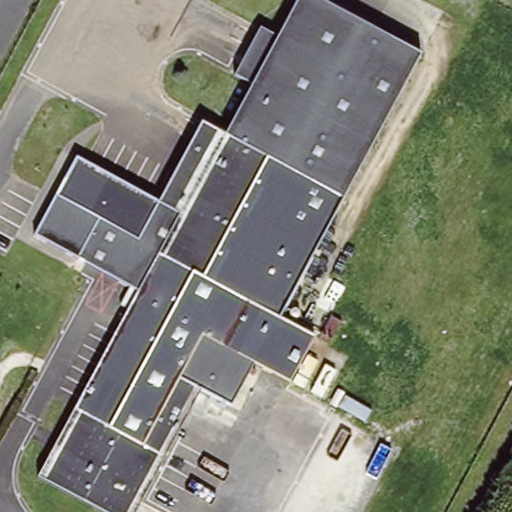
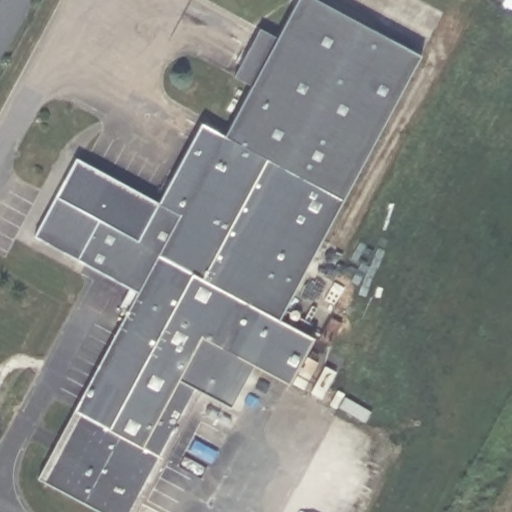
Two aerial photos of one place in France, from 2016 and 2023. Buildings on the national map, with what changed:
unchanged [(259,23),(279,33),(296,0),(324,0),(420,52),(375,137),(239,61),(259,23)]
unchanged [(176,179),(203,127),(207,120),(225,130),(251,80),(234,70),(239,61),(375,137),(314,254),(176,179)]
unchanged [(314,254),(282,315),(317,334),(297,371),(262,352),(233,407),(202,389),(138,512),(115,512),(42,474),(140,288),(38,235),(79,157),(160,199),(170,180),(175,183),(176,179),(314,254)]

